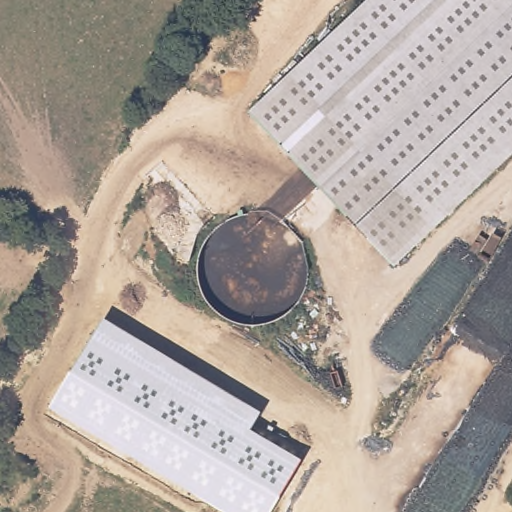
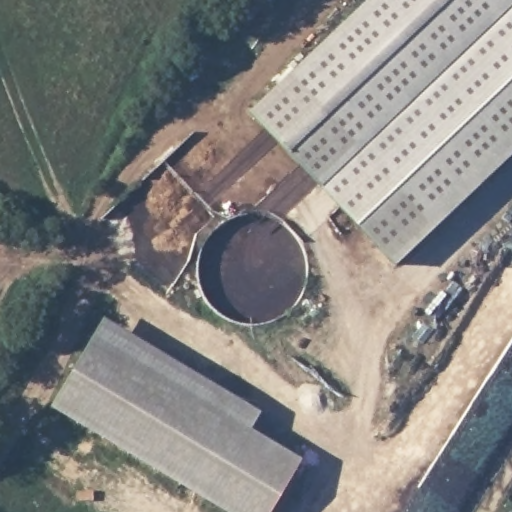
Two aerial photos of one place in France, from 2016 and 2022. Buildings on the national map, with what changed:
unchanged [(367,0),(512,0),(512,157),(395,268),(248,112),(367,0)]
unchanged [(104,317),(262,411),(252,430),(301,458),(270,512),(227,512),(50,407),(104,317)]

